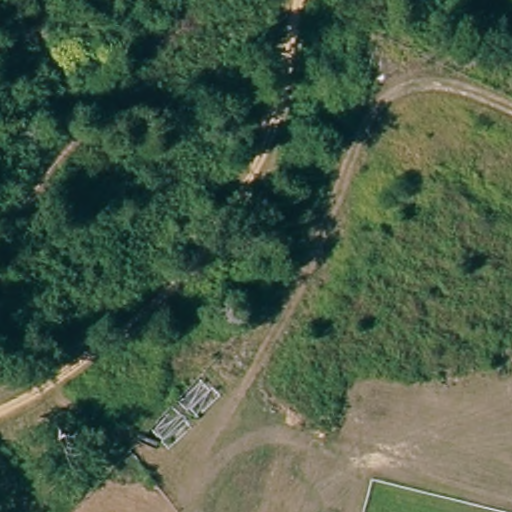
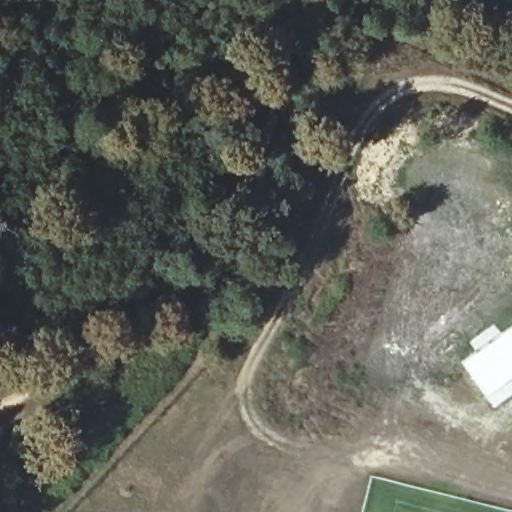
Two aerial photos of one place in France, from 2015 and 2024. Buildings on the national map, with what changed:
new [(512,322),(512,395),(494,409),(459,361),(473,349),(512,322)]

